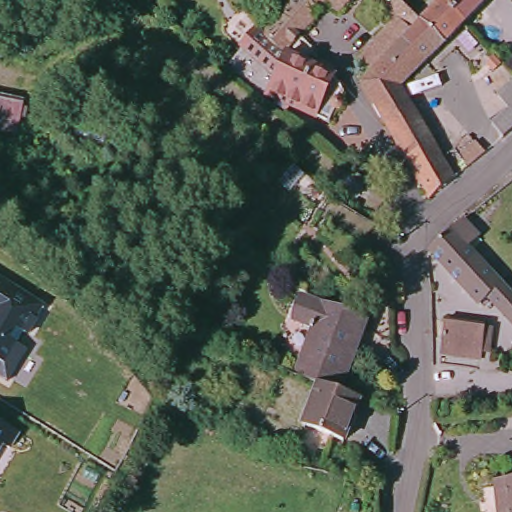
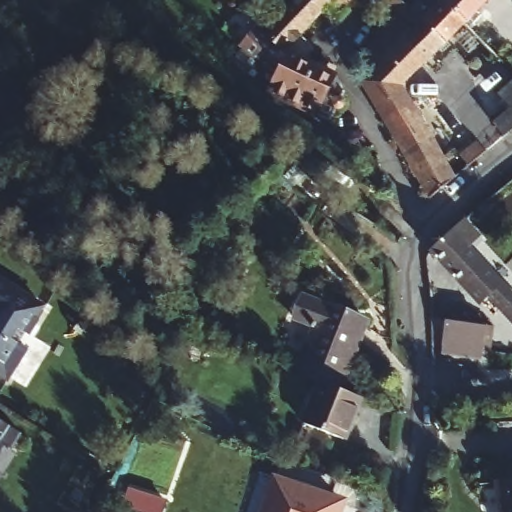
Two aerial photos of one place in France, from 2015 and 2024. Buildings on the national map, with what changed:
unchanged [(266,31),(283,9),(293,0),(355,0),(339,16),(329,5),(283,49),(266,31)]
unchanged [(399,15),(384,0),(405,0),(423,17),(372,69),(359,56),(399,15)]
unchanged [(455,174),(429,195),(361,80),(372,69),(423,17),(439,0),(446,0),(484,0),(465,19),(402,82),(455,174)]
unchanged [(249,73),(259,62),(276,76),(288,51),(319,66),(333,75),(315,114),(269,92),(266,98),(261,94),(245,80),(223,62),(229,55),(249,73)]
unchanged [(500,132),(490,121),(508,105),(496,90),(512,75),(512,122),(500,132)]
unchanged [(0,129),(0,93),(22,97),(15,133),(0,129)]
unchanged [(469,161),(458,146),(469,136),(482,151),(469,161)]
unchanged [(482,230),(469,241),(512,289),(512,313),(490,288),(481,296),(431,241),(466,212),(482,230)]
unchanged [(0,377),(0,274),(48,305),(29,335),(24,332),(18,343),(29,351),(8,381),(0,377)]
unchanged [(313,328),(291,320),(299,297),(364,323),(339,390),(319,382),(315,381),(296,373),(313,328)]
unchanged [(473,360),(434,355),(438,325),(431,324),(433,310),(483,317),(483,321),(496,323),(492,346),(488,345),(486,362),(473,360)]
unchanged [(344,438),(304,423),(319,382),(339,390),(359,398),(344,438)]
unchanged [(10,448),(4,445),(0,452),(0,419),(20,432),(10,448)]
new [(274,475),(340,500),(335,512),(261,512),(274,475)]
unchanged [(493,500),(491,478),(512,476),(512,512),(494,512),(493,500)]

